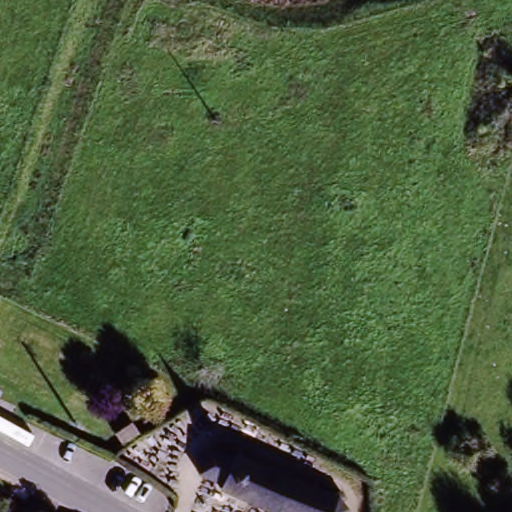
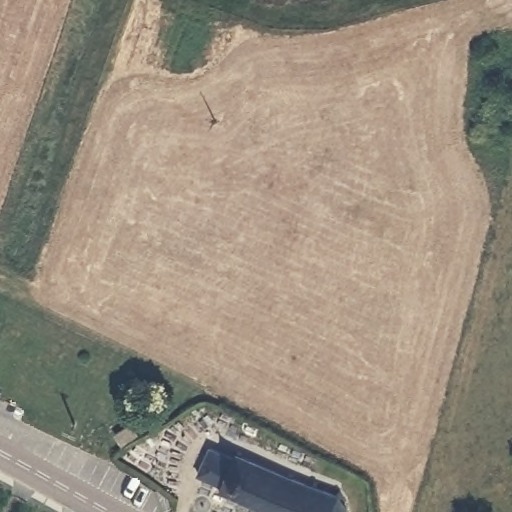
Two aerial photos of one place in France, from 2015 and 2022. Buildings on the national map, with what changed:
unchanged [(115,433),(131,423),(137,433),(121,443),(115,433)]
unchanged [(242,453),(242,457),(287,476),(290,474),(292,478),(312,486),(313,483),(317,484),(317,488),(333,494),(339,492),(343,498),(340,499),(347,509),(346,512),(273,512),(221,489),(222,486),(198,475),(210,448),(225,454),(227,449),(237,454),(238,451),(242,453)]

